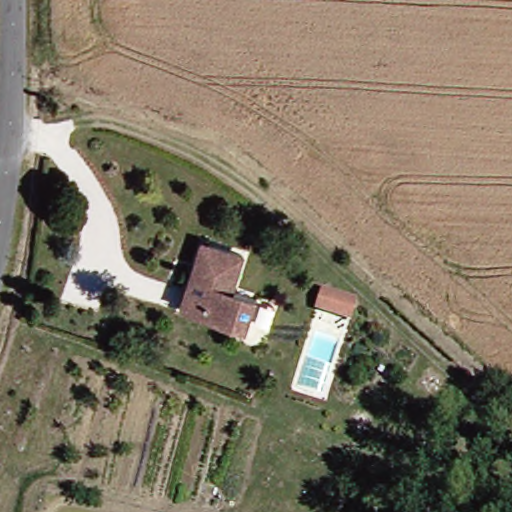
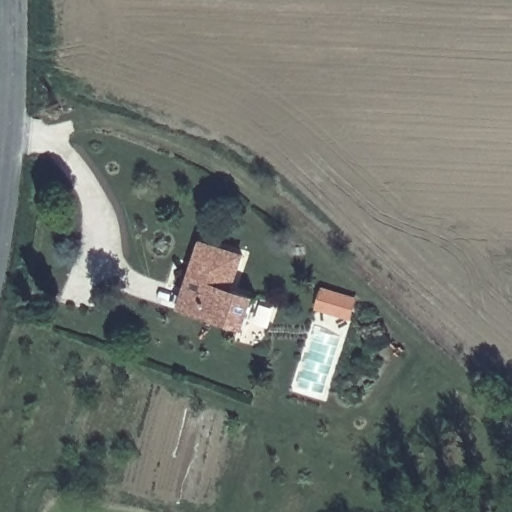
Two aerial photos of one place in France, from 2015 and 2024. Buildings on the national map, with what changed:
unchanged [(228,317),(190,306),(197,281),(194,280),(205,243),(246,254),(236,288),(260,295),(252,320),(251,323),(228,317)]
unchanged [(324,288),(355,297),(350,314),(319,305),(324,288)]

